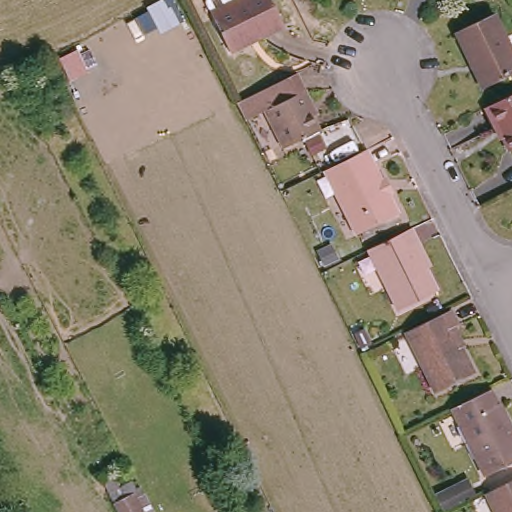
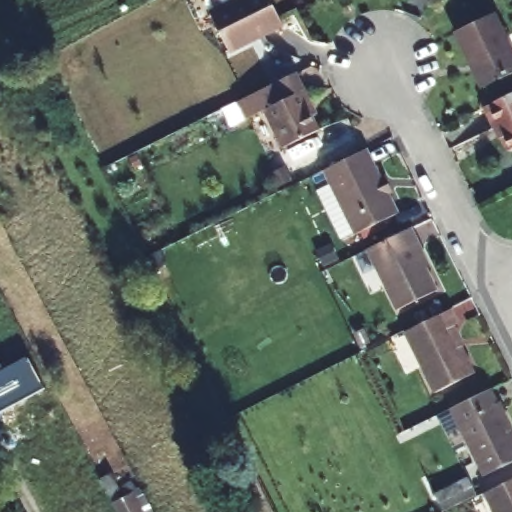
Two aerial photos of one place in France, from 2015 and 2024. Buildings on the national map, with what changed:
unchanged [(263,37),(262,36),(254,39),(256,42),(232,53),(213,14),(240,0),(272,0),(286,27),(263,37)]
unchanged [(472,60),(469,61),(454,27),(494,10),(512,49),(512,70),(483,82),(472,60)]
unchanged [(246,120),(238,102),(298,72),(304,93),(263,112),(246,120)]
unchanged [(287,160),(263,112),(304,93),(312,109),(321,125),(312,130),(319,145),(287,160)]
unchanged [(491,133),(487,135),(477,114),(512,96),(512,152),(503,157),(491,133)]
unchanged [(352,232),(345,217),(352,214),(347,205),(338,204),(335,197),(341,188),(330,164),(364,147),(395,211),(398,217),(362,235),(359,229),(352,232)]
unchanged [(409,226),(418,243),(415,245),(436,288),(397,307),(368,246),(409,226)]
unchanged [(450,311),(458,326),(451,329),(474,374),(436,393),(405,333),(450,311)]
new [(4,370),(29,356),(45,387),(0,412),(0,363),(4,370)]
unchanged [(512,432),(512,460),(486,473),(457,415),(454,406),(490,387),(512,432)]
unchanged [(113,482),(103,487),(97,474),(107,468),(113,482)]
unchanged [(105,489),(131,475),(135,482),(150,512),(117,512),(108,496),(105,489)]
unchanged [(494,512),(487,497),(512,484),(512,512),(494,512)]

